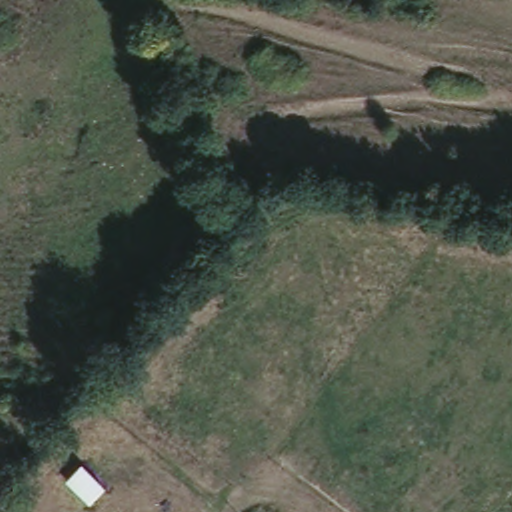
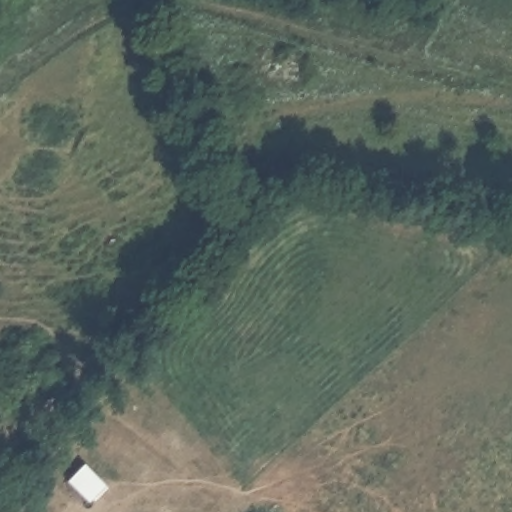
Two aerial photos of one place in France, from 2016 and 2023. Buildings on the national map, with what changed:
unchanged [(64,481),(83,460),(107,486),(88,502),(64,481)]

